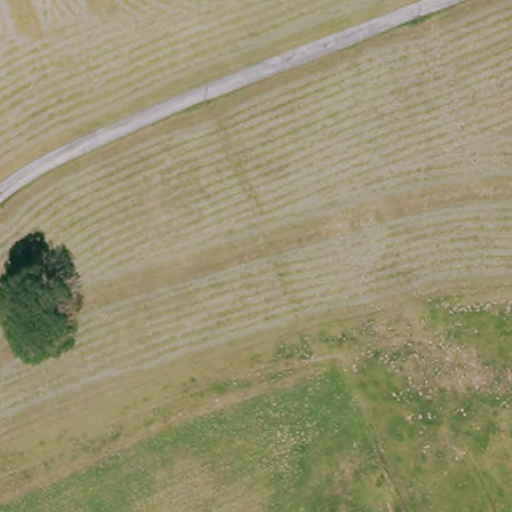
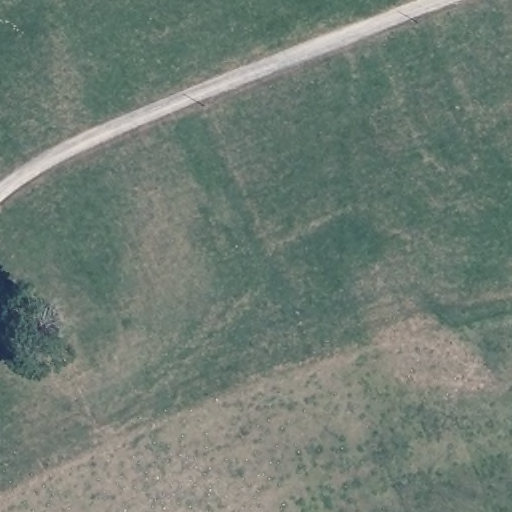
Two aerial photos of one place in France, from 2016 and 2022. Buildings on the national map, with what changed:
[]

